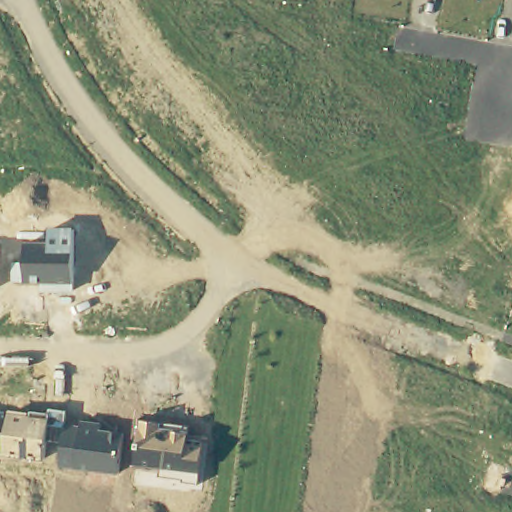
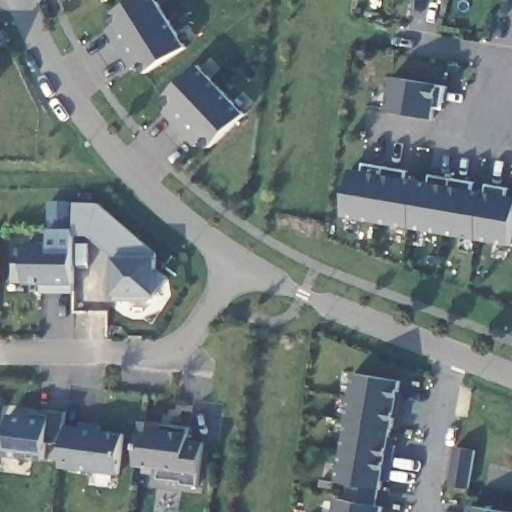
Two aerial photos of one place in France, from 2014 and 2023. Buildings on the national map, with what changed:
new [(185,48),(146,74),(140,65),(131,69),(107,30),(115,26),(109,15),(134,0),(157,0),(185,48)]
new [(207,149),(203,142),(196,146),(163,113),(171,107),(162,98),(199,65),(246,115),(207,149)]
new [(447,85),(443,110),(435,108),(434,119),(385,112),(391,77),(447,85)]
new [(350,170),(363,172),(364,163),(407,171),(406,179),(429,183),(430,175),(475,183),(474,189),(486,192),(488,183),(510,188),(508,197),(512,198),(512,246),(342,218),(350,170)]
new [(49,200),(99,202),(158,253),(160,295),(113,295),(114,257),(89,235),(74,236),(74,230),(49,229),(49,200)]
unchanged [(74,285),(23,286),(22,243),(48,243),(49,228),(74,229),(74,285)]
new [(347,499),(350,486),(336,484),(352,372),(400,382),(381,489),(376,489),(374,505),(380,506),(380,512),(334,512),(336,498),(347,499)]
unchanged [(46,443),(45,461),(0,457),(0,434),(4,434),(7,413),(47,415),(49,409),(66,410),(66,427),(64,442),(46,443)]
unchanged [(119,475),(60,466),(64,442),(66,427),(79,428),(80,422),(103,425),(102,432),(121,435),(119,475)]
unchanged [(197,485),(183,483),(183,481),(158,478),(157,470),(133,468),(136,424),(190,426),(188,437),(205,440),(197,485)]
new [(501,512),(469,512),(470,506),(501,512)]

